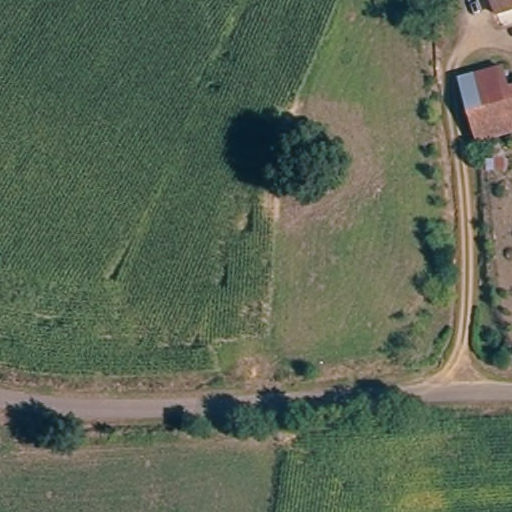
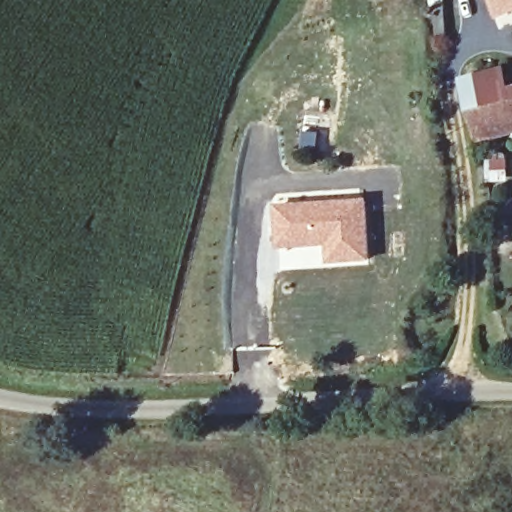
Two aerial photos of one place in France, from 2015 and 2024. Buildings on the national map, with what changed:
unchanged [(487,0),(512,0),(512,7),(493,14),(487,0)]
unchanged [(505,78),(510,98),(512,97),(512,139),(482,147),(468,87),(505,78)]
new [(323,199),(368,197),(371,261),(324,265),(323,248),(277,252),(273,204),(323,199)]

